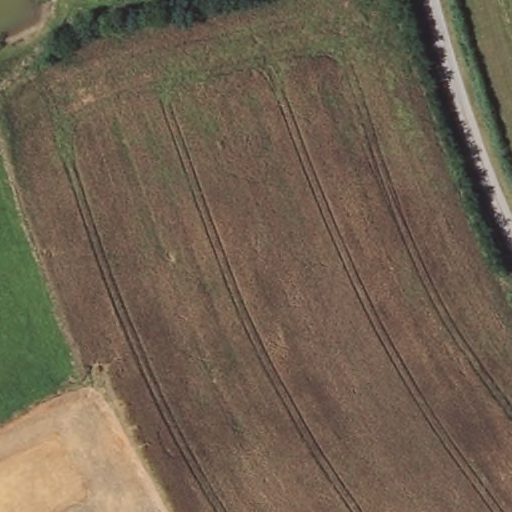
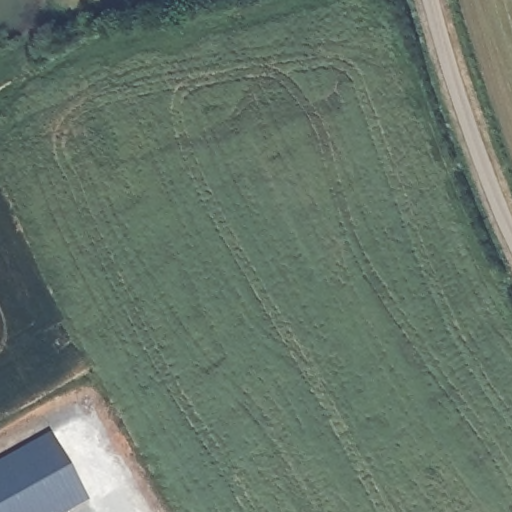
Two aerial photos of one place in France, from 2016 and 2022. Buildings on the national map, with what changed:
new [(91,500),(69,512),(0,512),(0,459),(51,430),(91,500)]

